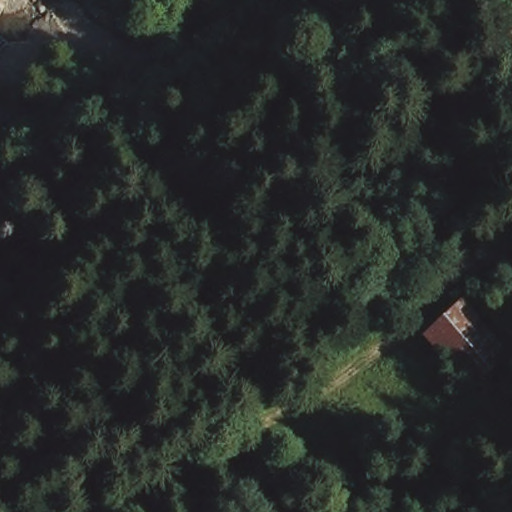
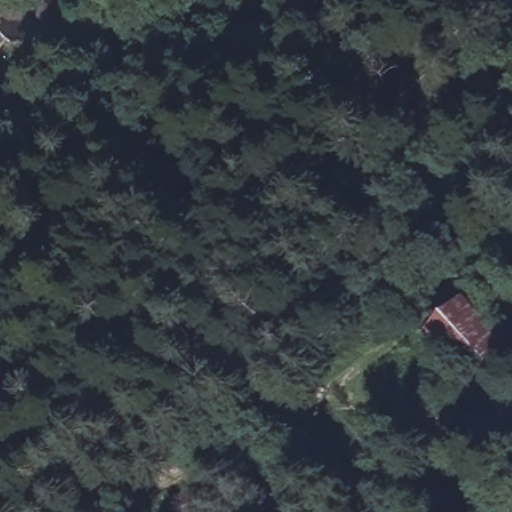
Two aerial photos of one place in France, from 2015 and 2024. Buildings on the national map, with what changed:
unchanged [(459,295),(494,342),(499,348),(469,370),(429,317),(459,295)]

